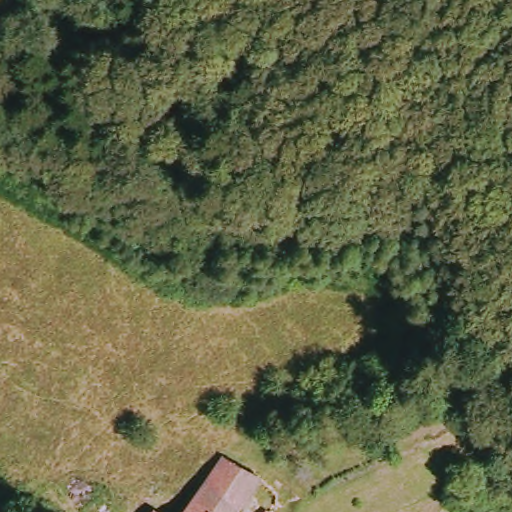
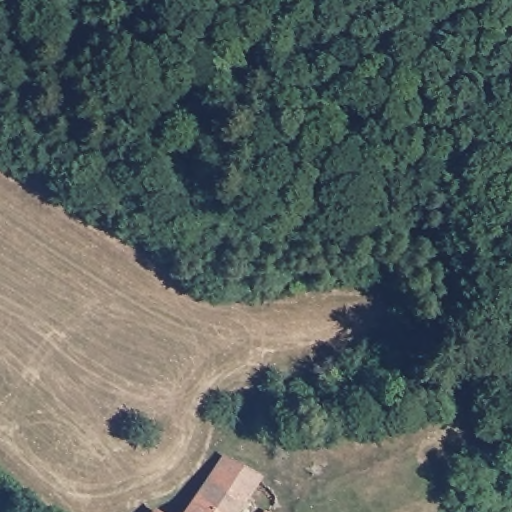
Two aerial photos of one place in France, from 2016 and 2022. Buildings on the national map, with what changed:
unchanged [(199,505),(211,486),(230,458),(264,483),(248,505),(244,512),(194,512),(199,505)]

